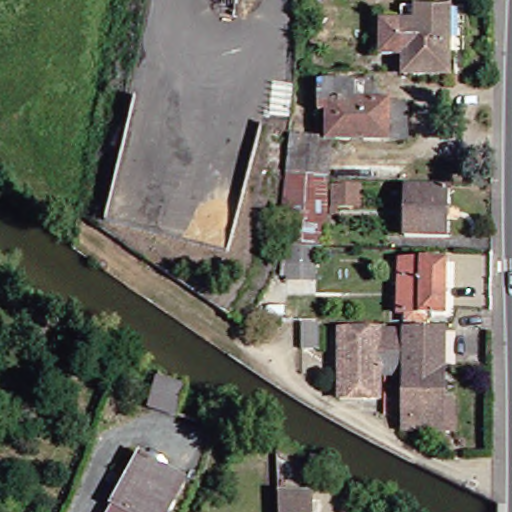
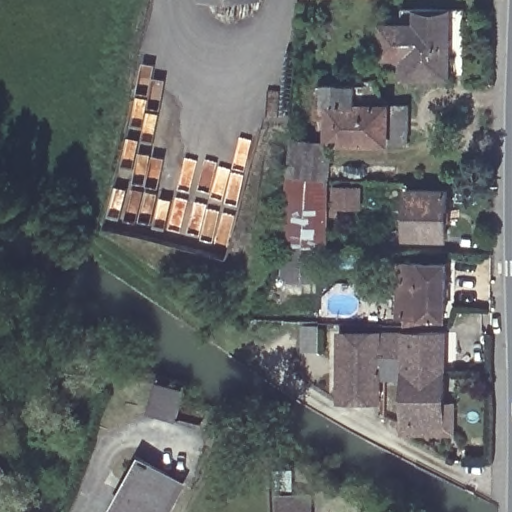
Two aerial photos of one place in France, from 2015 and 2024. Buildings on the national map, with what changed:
unchanged [(457,85),(417,86),(416,62),(395,62),(395,33),(409,33),(409,16),(425,16),(457,15),(458,64),(457,85)]
unchanged [(335,210),(335,250),(320,249),(323,300),(294,298),(295,275),(282,272),(288,245),(292,141),(329,141),(329,120),(320,119),(321,85),(360,85),(380,84),(394,102),(417,103),(417,145),(396,145),(340,144),(334,178),(334,186),(366,187),(366,209),(335,210)]
unchanged [(451,191),(450,239),(411,238),(412,191),(451,191)]
unchanged [(412,315),(404,315),(406,262),(449,264),(448,317),(429,316),(429,324),(412,324),(412,315)]
unchanged [(332,320),(332,346),(315,347),(314,321),(332,320)]
unchanged [(368,400),(346,400),(347,331),(448,333),(448,404),(459,404),(458,433),(409,434),(409,370),(385,370),(385,385),(386,400),(368,400)]
unchanged [(171,378),(166,402),(140,397),(147,360),(171,373),(171,378)]
unchanged [(183,476),(167,512),(116,512),(140,458),(183,476)]
unchanged [(314,512),(286,512),(286,497),(314,498),(314,512)]

